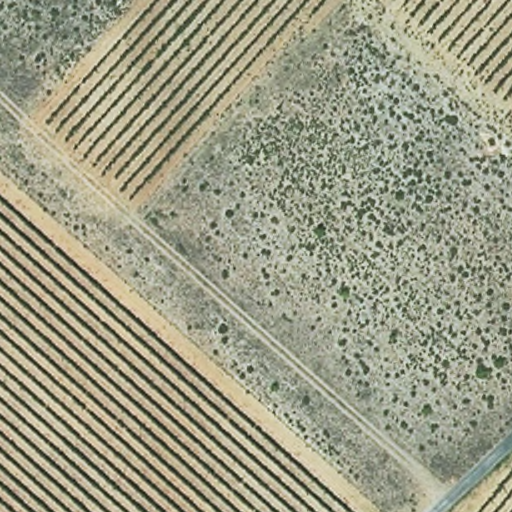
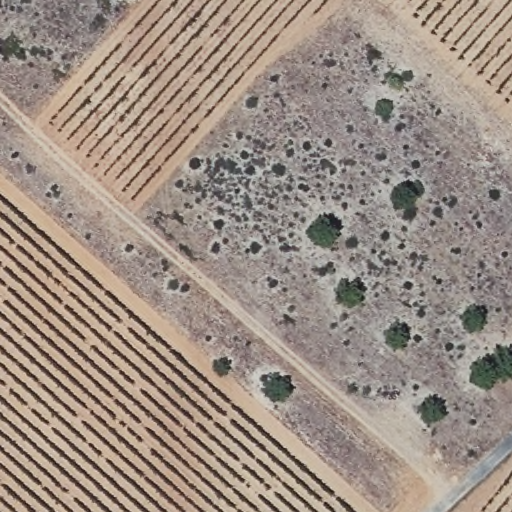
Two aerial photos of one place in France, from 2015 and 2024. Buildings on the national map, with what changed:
[]

